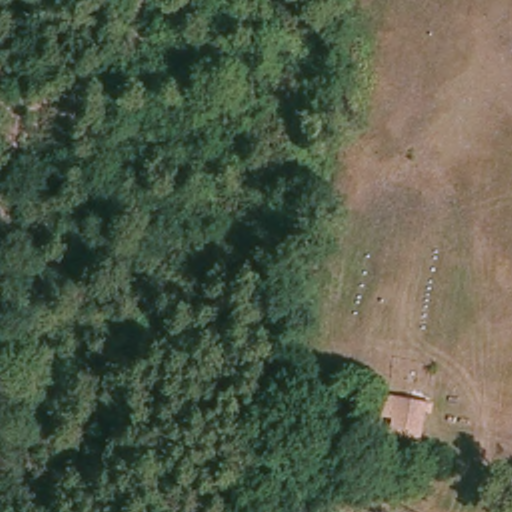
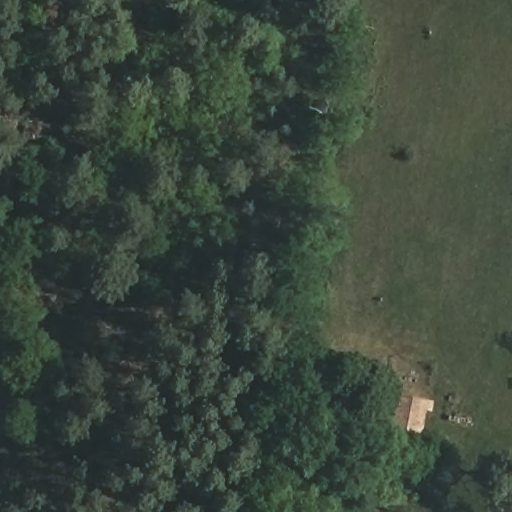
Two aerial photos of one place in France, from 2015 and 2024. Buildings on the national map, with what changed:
unchanged [(392,433),(398,395),(428,402),(421,439),(392,433)]

